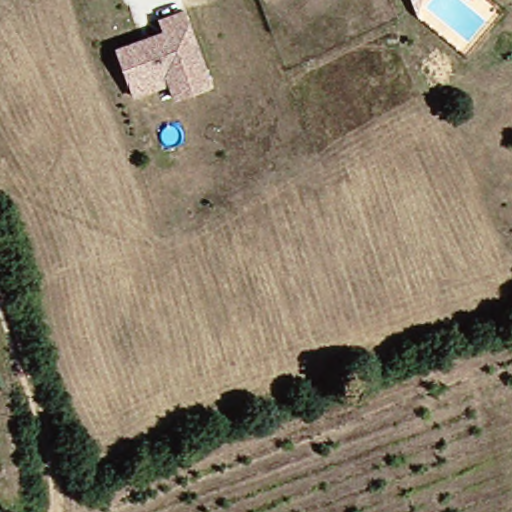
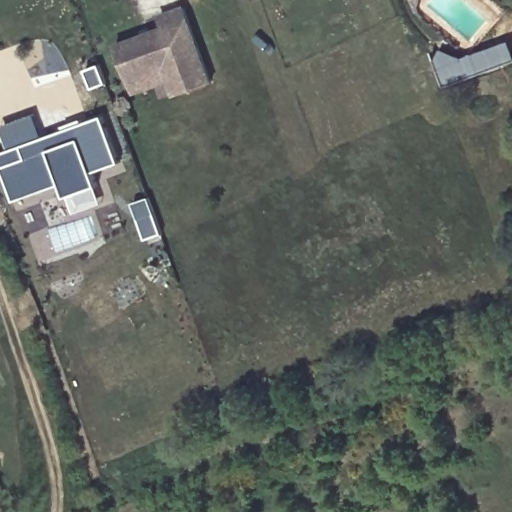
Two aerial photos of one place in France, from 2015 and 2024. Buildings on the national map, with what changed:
unchanged [(407,3),(406,0),(415,0),(411,14),(407,3)]
unchanged [(123,77),(110,42),(135,33),(142,30),(159,24),(155,12),(178,3),(206,78),(170,92),(164,75),(128,89),(123,77)]
new [(40,138),(101,117),(118,164),(93,173),(97,185),(66,196),(62,185),(16,201),(0,157),(0,152),(10,149),(2,127),(33,114),(40,138)]
new [(162,234),(146,240),(132,203),(150,197),(162,234)]

